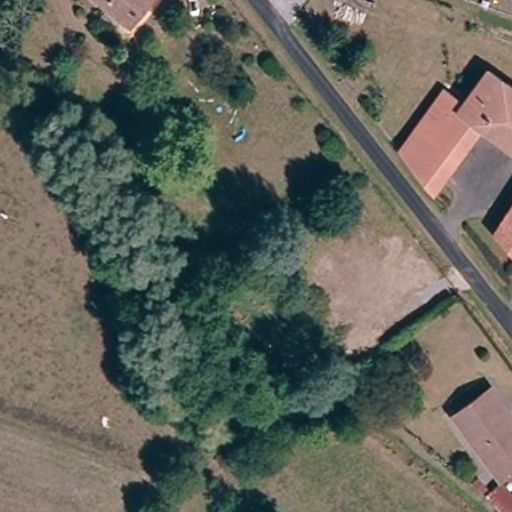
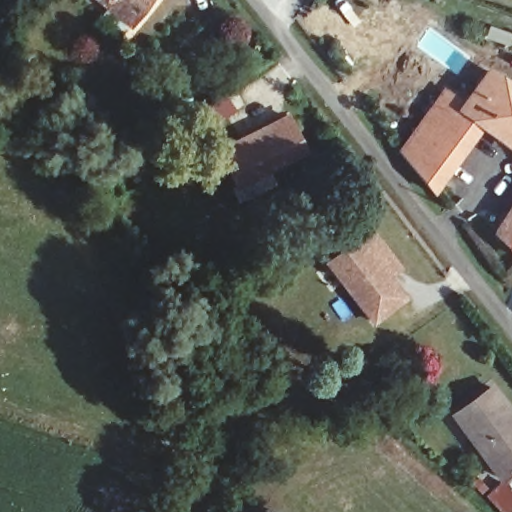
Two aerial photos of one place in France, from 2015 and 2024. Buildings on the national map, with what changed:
unchanged [(95,0),(151,0),(131,29),(95,0)]
unchanged [(410,134),(424,145),(446,115),(456,125),(497,74),(512,85),(512,149),(483,131),(437,196),(400,147),(410,134)]
new [(309,153),(236,190),(218,150),(289,114),(309,153)]
unchanged [(512,208),(512,244),(497,229),(512,208)]
new [(356,238),(351,233),(366,222),(404,269),(393,278),(410,298),(374,325),(325,263),(356,238)]
unchanged [(502,473),(456,410),(495,384),(512,411),(512,465),(502,473)]
unchanged [(507,512),(505,512),(489,492),(502,481),(512,494),(512,508),(507,512)]

